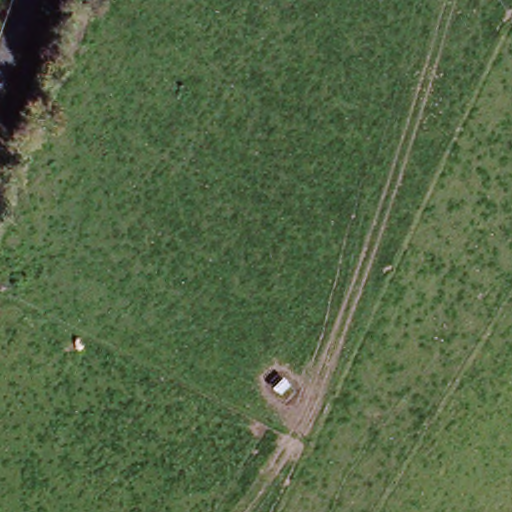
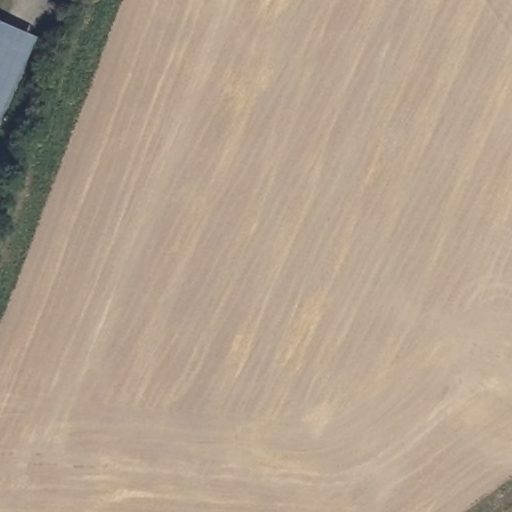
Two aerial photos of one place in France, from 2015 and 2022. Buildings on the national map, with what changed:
new [(38,40),(0,121),(0,21),(38,40)]

